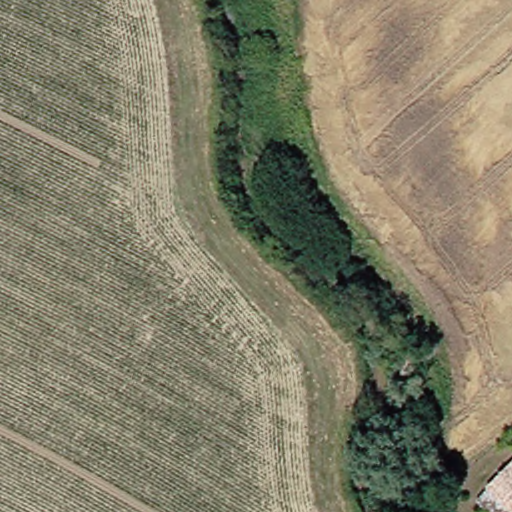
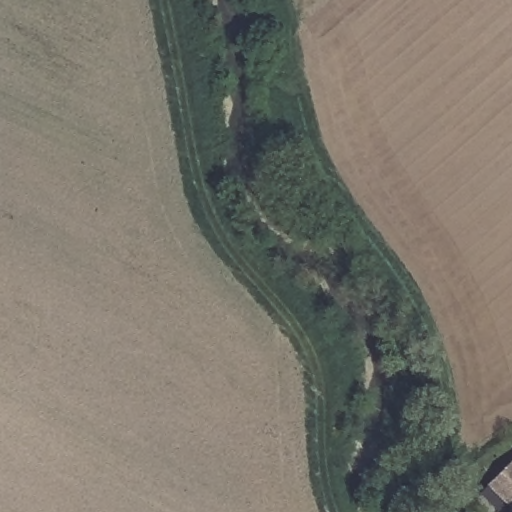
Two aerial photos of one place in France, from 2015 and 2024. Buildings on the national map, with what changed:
unchanged [(512,455),(512,507),(486,481),(512,455)]

